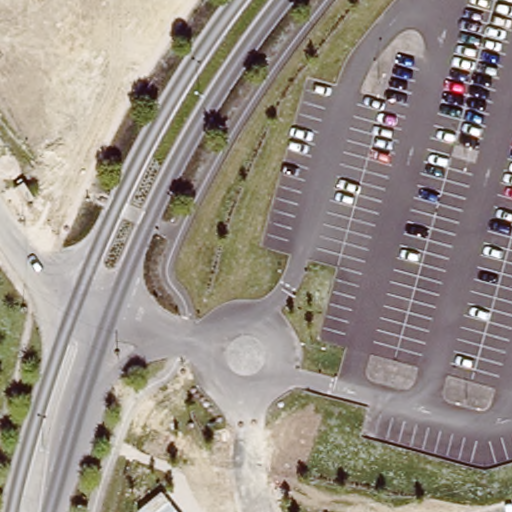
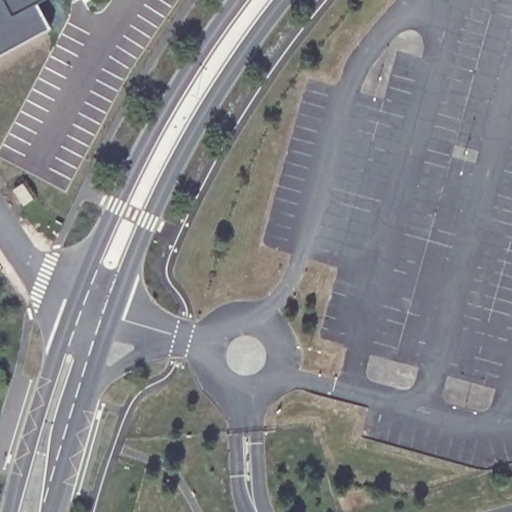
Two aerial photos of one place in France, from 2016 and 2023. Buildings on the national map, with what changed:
new [(48,21),(0,47),(0,0),(38,0),(48,21)]
unchanged [(22,201),(12,186),(23,182),(31,196),(22,201)]

